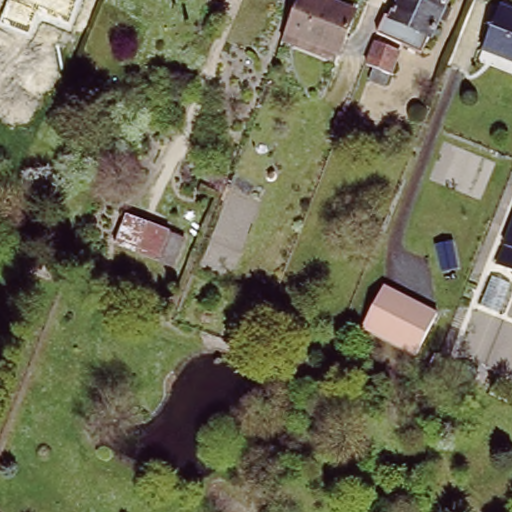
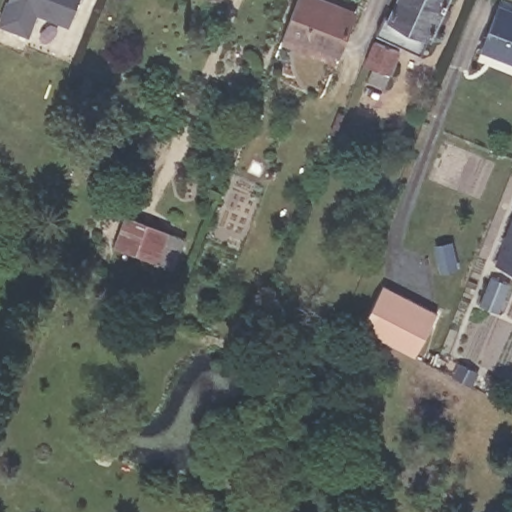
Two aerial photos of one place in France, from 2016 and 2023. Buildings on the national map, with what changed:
unchanged [(8,0),(81,0),(72,24),(37,12),(30,36),(0,28),(0,17),(8,0)]
unchanged [(217,1),(214,0),(217,0),(217,1)]
unchanged [(312,52),(282,40),(299,0),(322,0),(329,3),(356,13),(340,54),(337,62),(312,52)]
unchanged [(447,5),(452,8),(447,17),(442,15),(424,55),(377,34),(385,16),(390,18),(398,0),(449,0),(447,5)]
unchanged [(512,57),(482,45),(499,5),(512,10),(512,57)]
unchanged [(367,80),(372,68),(365,65),(375,42),(400,52),(390,74),(386,87),(367,80)]
unchanged [(185,245),(173,275),(159,269),(157,267),(119,252),(130,224),(185,245)]
unchanged [(512,236),(512,275),(499,269),(512,236)]
unchanged [(450,240),(455,264),(440,267),(435,243),(450,240)]
unchanged [(512,282),(500,311),(482,302),(493,274),(512,282)]
unchanged [(436,314),(415,355),(362,328),(384,286),(436,314)]
unchanged [(479,372),(473,384),(455,376),(462,363),(479,372)]

